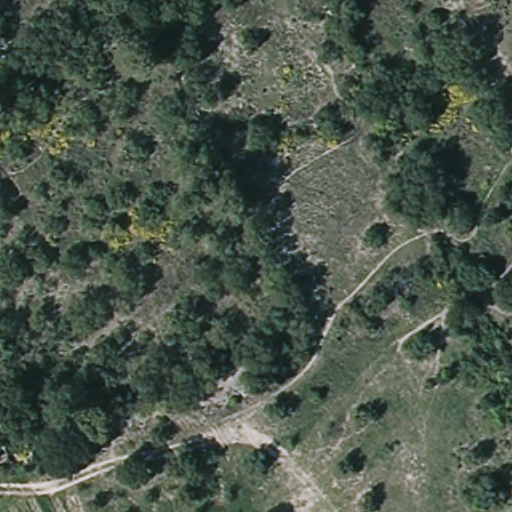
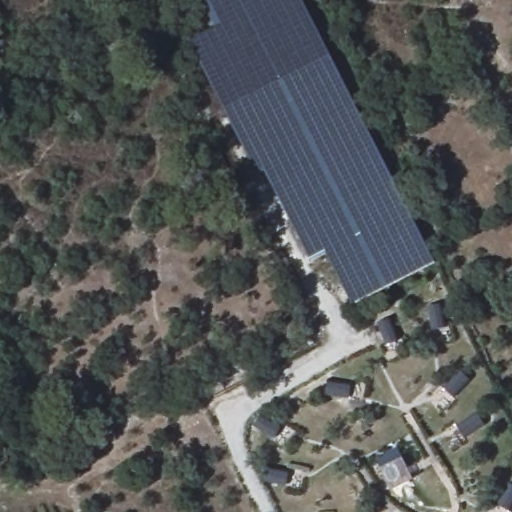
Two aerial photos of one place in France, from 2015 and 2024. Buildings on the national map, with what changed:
new [(308,258),(264,169),(255,173),(223,109),(187,40),(213,25),(200,0),(301,0),(329,55),(434,261),(351,304),(323,251),(308,258)]

